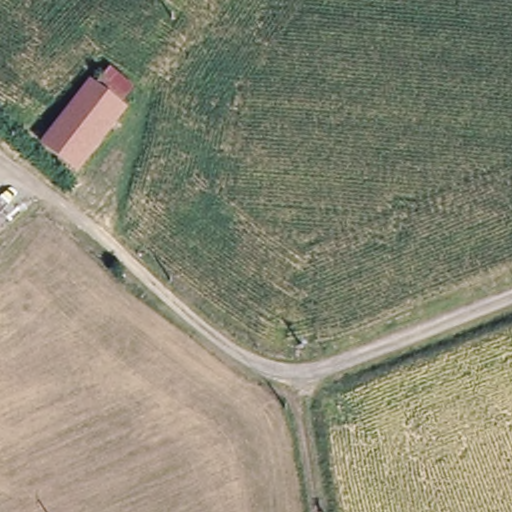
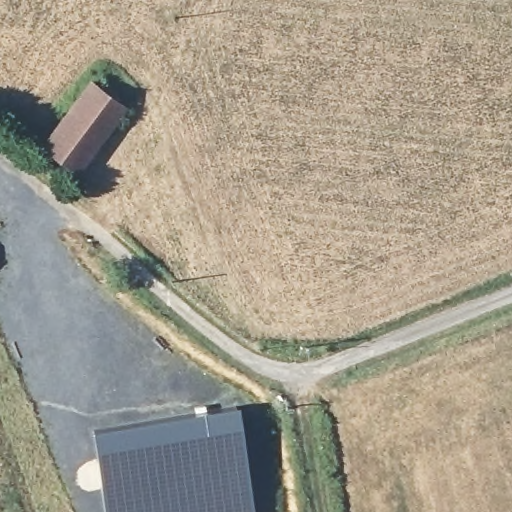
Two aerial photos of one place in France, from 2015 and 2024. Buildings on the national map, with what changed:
demolished [(36,145),(88,79),(95,84),(125,45),(153,68),(125,100),(132,106),(78,175),(36,145)]
new [(41,157),(84,87),(91,92),(106,70),(132,86),(119,109),(124,111),(80,182),(41,157)]
new [(242,425),(255,512),(106,512),(95,448),(92,429),(239,407),(242,425)]

